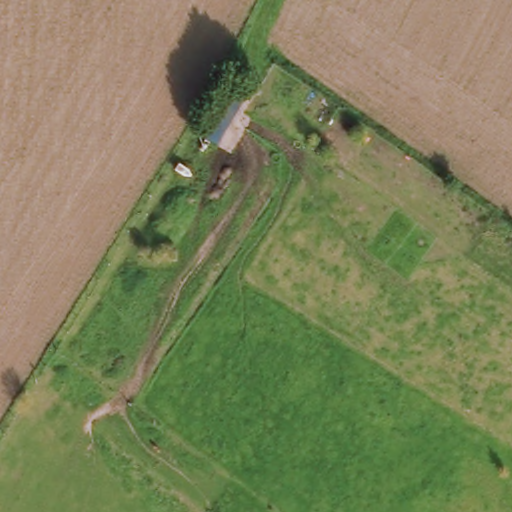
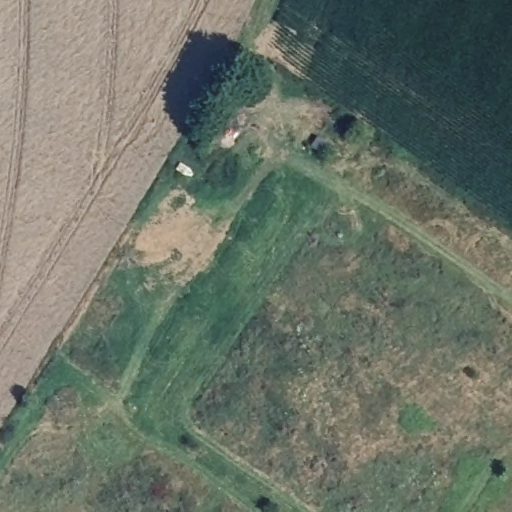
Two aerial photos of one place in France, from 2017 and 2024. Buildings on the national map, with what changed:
unchanged [(221,146),(202,134),(231,84),(252,93),(221,146)]

